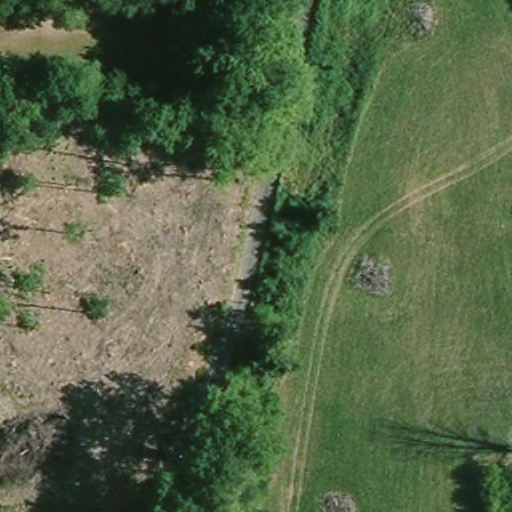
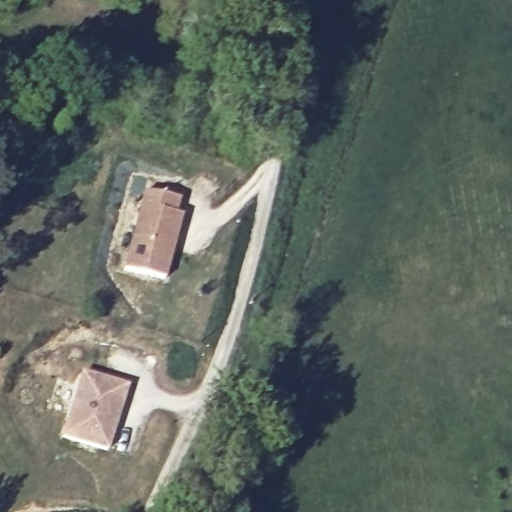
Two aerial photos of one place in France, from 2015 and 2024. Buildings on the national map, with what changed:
new [(182,199),(177,215),(184,217),(166,282),(124,270),(145,190),(182,199)]
new [(127,386),(107,449),(65,436),(84,372),(127,386)]

